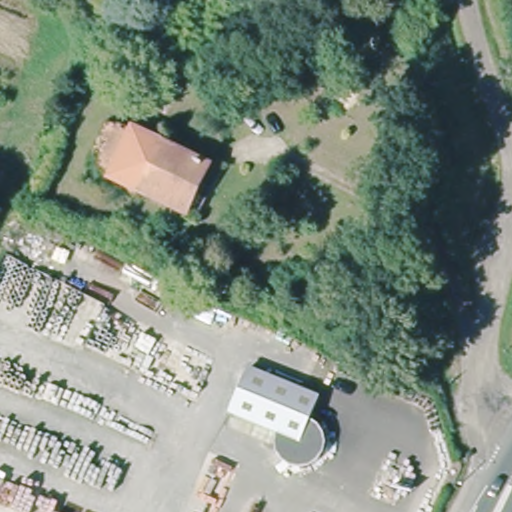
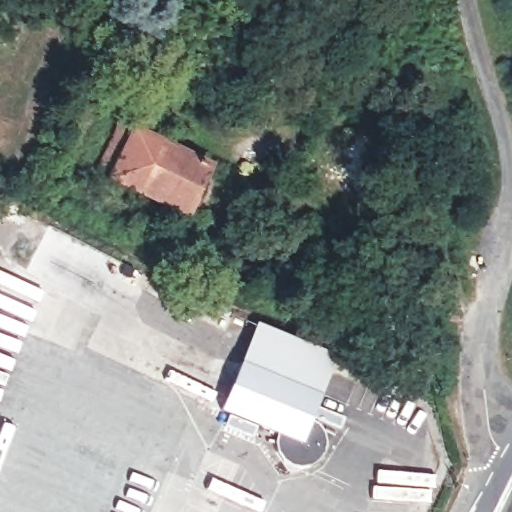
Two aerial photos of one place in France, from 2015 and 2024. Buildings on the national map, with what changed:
unchanged [(123,123),(197,155),(176,205),(101,171),(123,123)]
new [(248,363),(263,327),(336,356),(319,394),(248,363)]
unchanged [(248,363),(319,394),(310,418),(238,387),(248,363)]
unchanged [(326,437),(325,443),(323,450),(318,456),(313,460),(307,462),(300,464),(293,463),(286,462),(281,457),(276,453),(272,447),(272,432),(227,412),(238,387),(310,418),(315,421),(326,437)]

